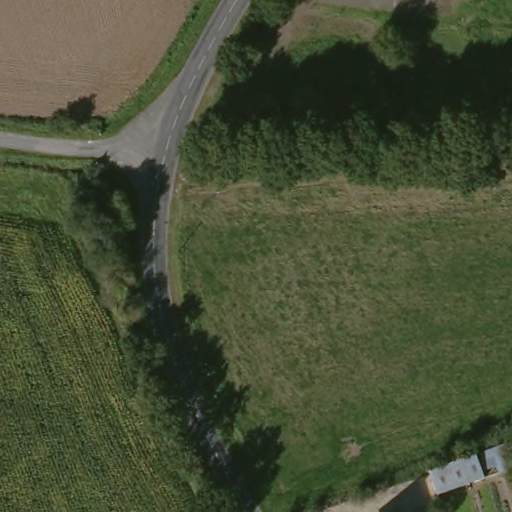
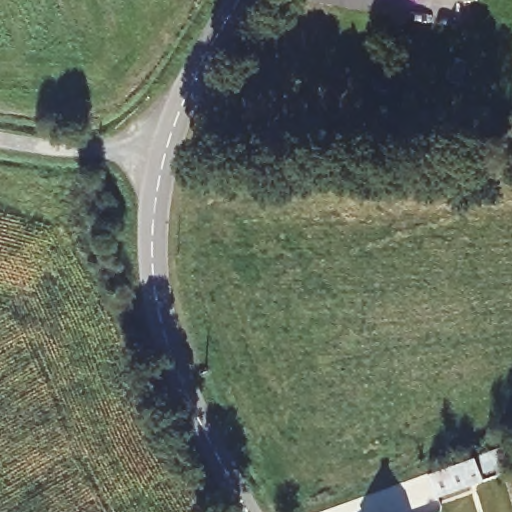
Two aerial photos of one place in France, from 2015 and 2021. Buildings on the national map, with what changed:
unchanged [(433,501),(426,476),(474,461),(482,487),(433,501)]

